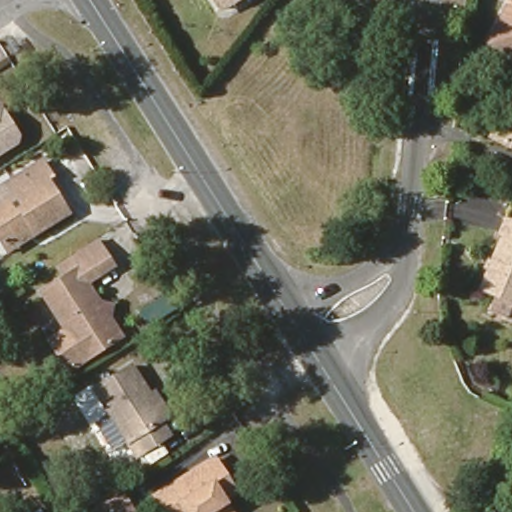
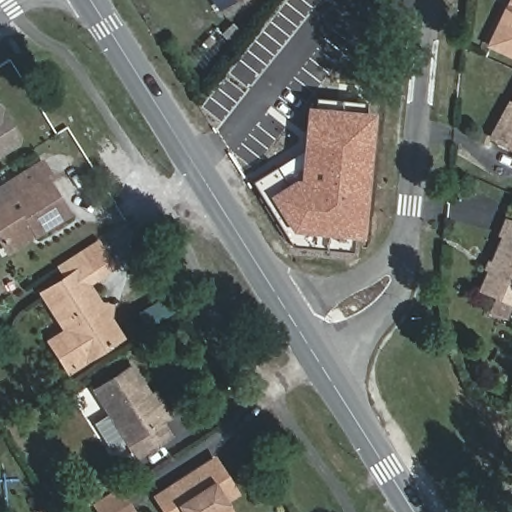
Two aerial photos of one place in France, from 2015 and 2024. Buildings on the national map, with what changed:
unchanged [(221,9),(215,0),(237,0),(221,9)]
unchanged [(510,0),(512,0),(512,55),(489,43),(510,0)]
new [(302,149),(306,106),(317,107),(315,98),(365,102),(364,111),(374,112),(362,239),(353,237),(350,251),(292,245),(252,181),(302,149)]
unchanged [(512,101),(512,152),(492,141),(512,101)]
unchanged [(17,134),(16,138),(0,149),(0,106),(17,134)]
unchanged [(2,244),(0,241),(0,188),(8,182),(41,162),(51,177),(46,180),(67,213),(33,235),(32,234),(6,250),(2,244)]
unchanged [(500,296),(485,289),(509,235),(503,233),(510,217),(512,218),(512,317),(494,309),(500,296)]
unchanged [(68,365),(48,336),(64,325),(40,288),(64,273),(56,260),(78,246),(95,235),(112,260),(95,271),(85,277),(120,332),(68,365)]
new [(168,295),(176,308),(148,327),(139,313),(168,295)]
unchanged [(136,457),(94,390),(131,366),(150,396),(155,393),(169,415),(160,421),(169,436),(136,457)]
unchanged [(213,455),(230,480),(235,488),(223,496),(233,512),(168,512),(156,493),(213,455)]
unchanged [(101,512),(99,508),(94,501),(116,487),(121,494),(132,511),(131,512),(101,512)]

